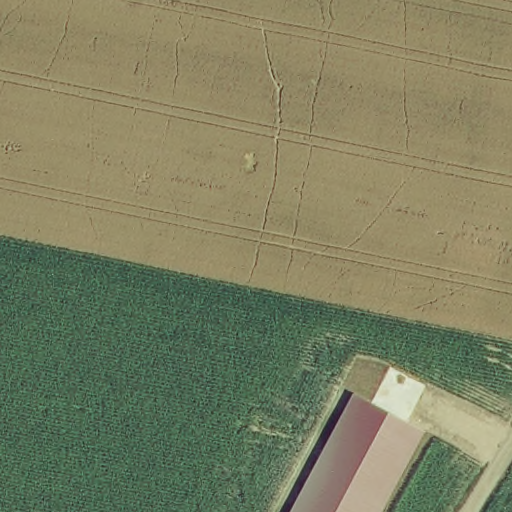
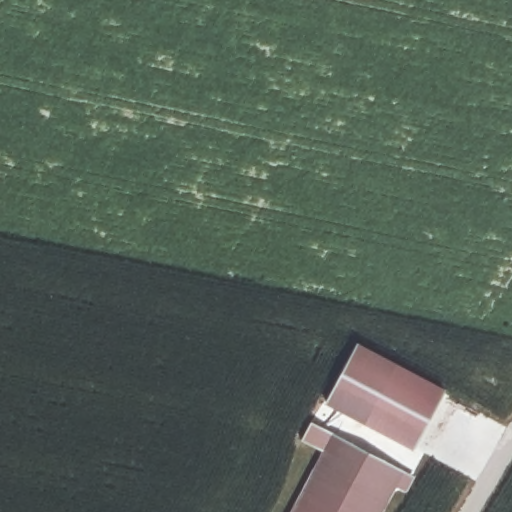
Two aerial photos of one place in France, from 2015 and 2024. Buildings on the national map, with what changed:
new [(445,389),(414,448),(327,402),(359,343),(445,389)]
unchanged [(303,440),(311,422),(414,476),(406,491),(393,484),(378,512),(290,512),(322,450),(303,440)]

